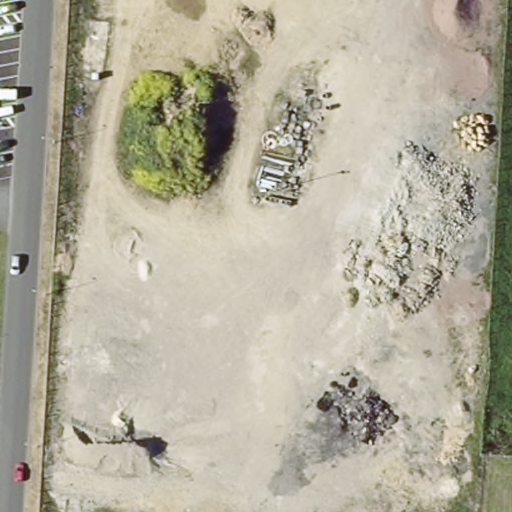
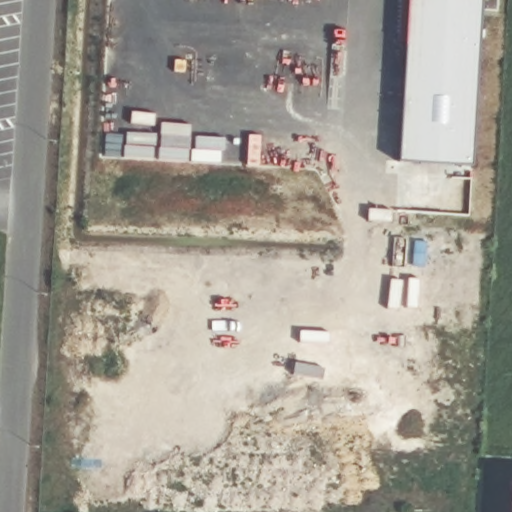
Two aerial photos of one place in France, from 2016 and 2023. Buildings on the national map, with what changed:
new [(482,0),(472,174),(399,170),(409,0),(482,0)]

